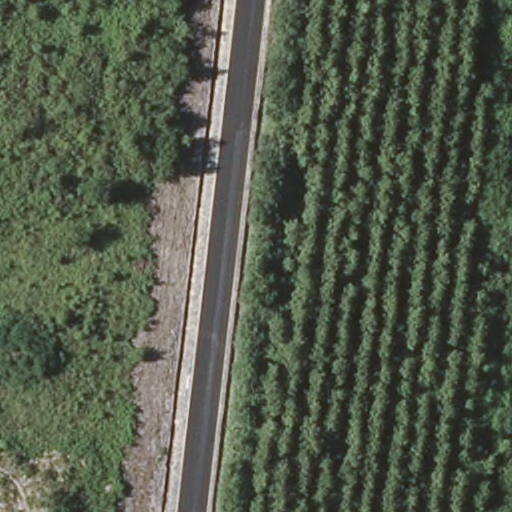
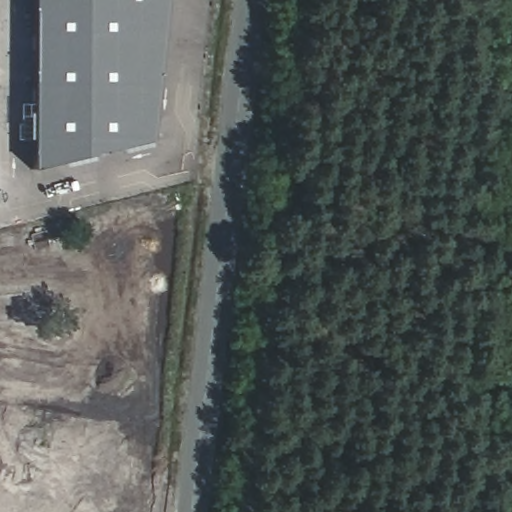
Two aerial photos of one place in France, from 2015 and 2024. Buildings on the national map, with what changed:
new [(34,170),(35,0),(166,0),(152,140),(34,170)]

